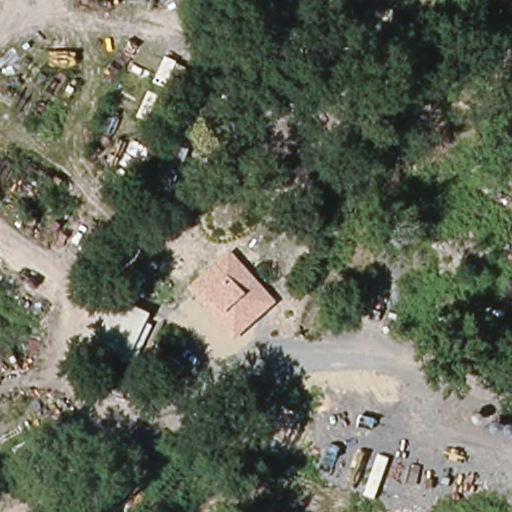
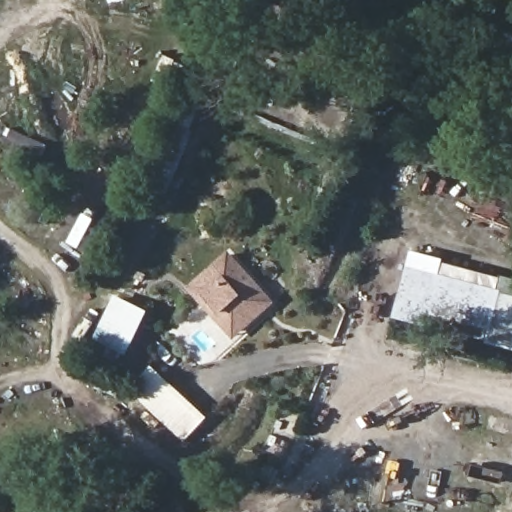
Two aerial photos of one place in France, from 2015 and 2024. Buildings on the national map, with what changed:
new [(443,262),(512,279),(512,340),(430,322),(429,327),(394,318),(413,251),(444,258),(443,262)]
unchanged [(273,305),(232,340),(187,287),(229,252),(273,305)]
unchanged [(126,361),(91,344),(116,298),(148,311),(126,361)]
new [(152,366),(208,417),(185,442),(130,390),(152,366)]

